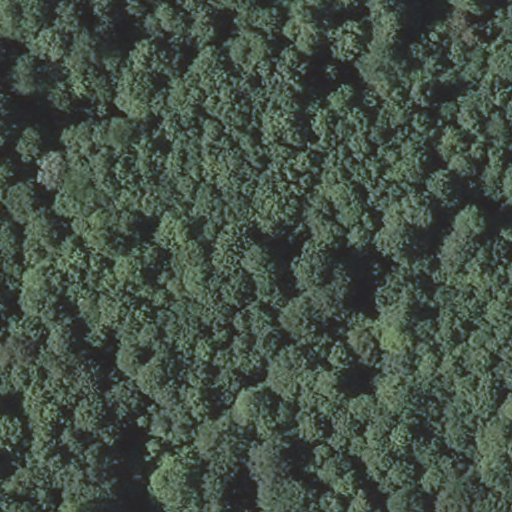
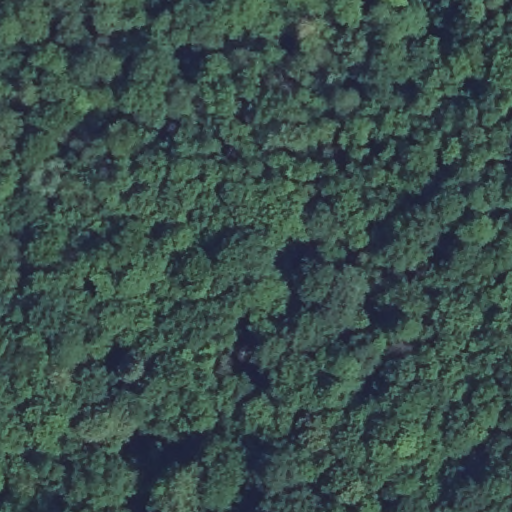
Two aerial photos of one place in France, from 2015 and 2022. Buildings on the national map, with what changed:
[]

